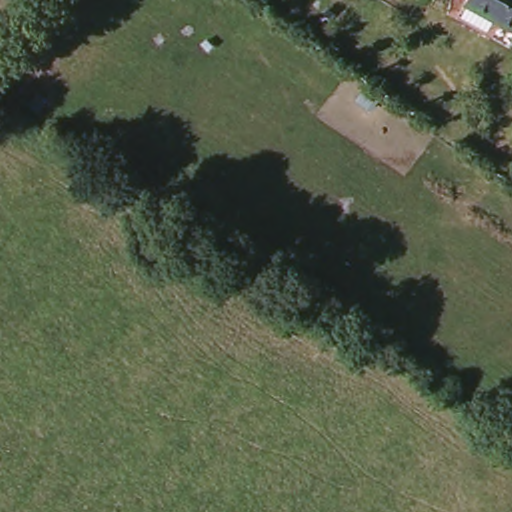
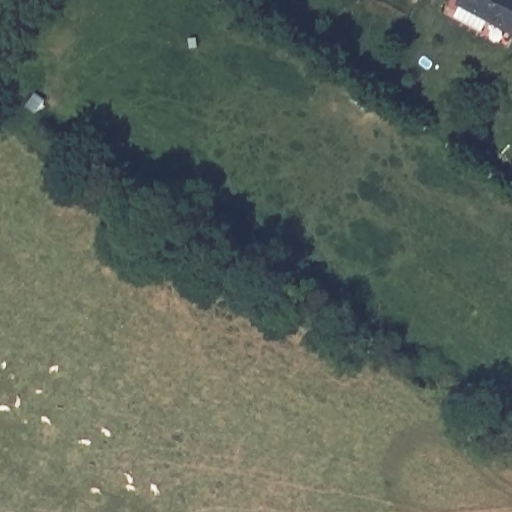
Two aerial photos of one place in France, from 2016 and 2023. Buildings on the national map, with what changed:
unchanged [(459,0),(512,0),(512,30),(459,0)]

